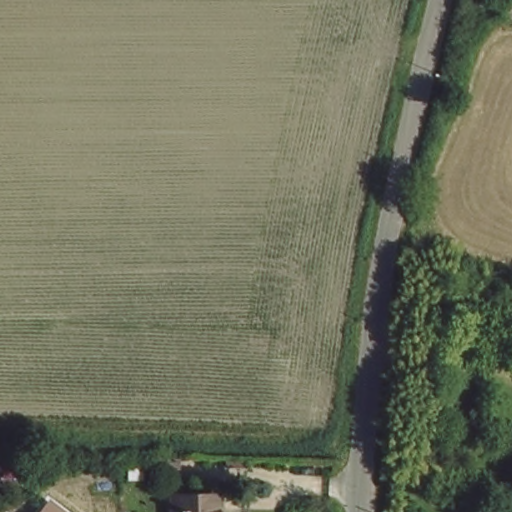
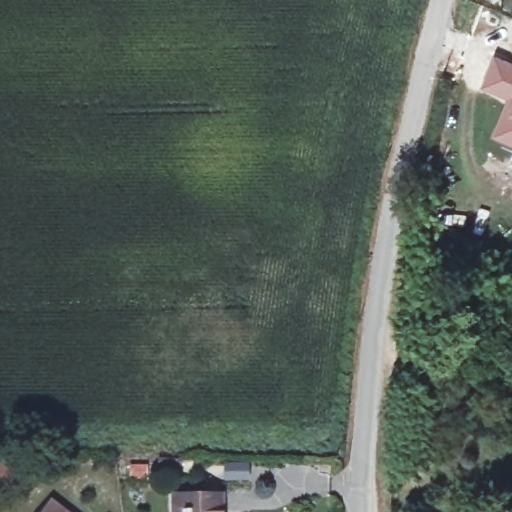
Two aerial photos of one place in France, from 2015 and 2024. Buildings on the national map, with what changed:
new [(492,135),(508,99),(479,88),(494,56),(512,63),(512,144),(492,135)]
unchanged [(219,512),(176,512),(176,500),(218,499),(219,512)]
unchanged [(49,500),(66,512),(40,512),(49,500)]

